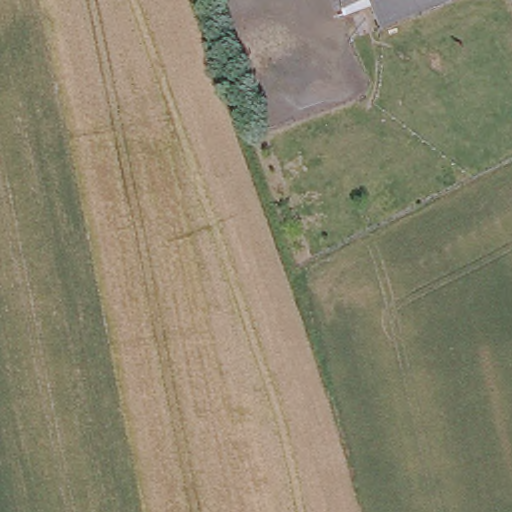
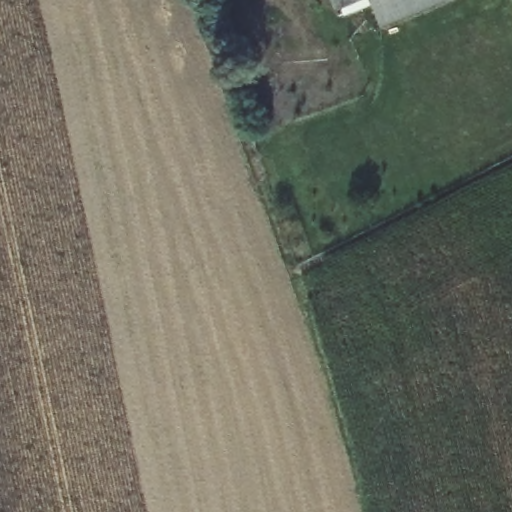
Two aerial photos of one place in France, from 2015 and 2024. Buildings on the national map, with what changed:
unchanged [(339,12),(334,0),(367,0),(361,2),(339,12)]
unchanged [(369,0),(445,0),(381,28),(369,0)]

